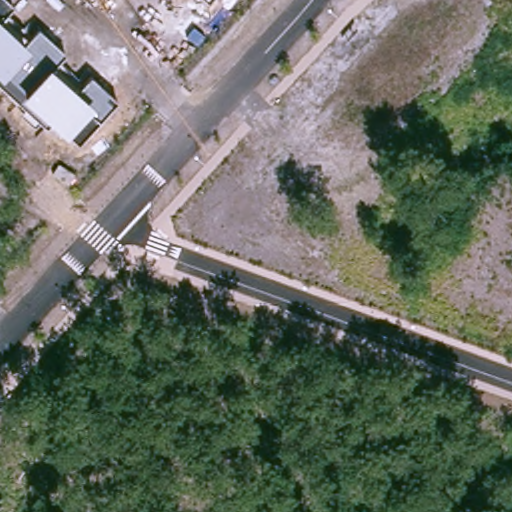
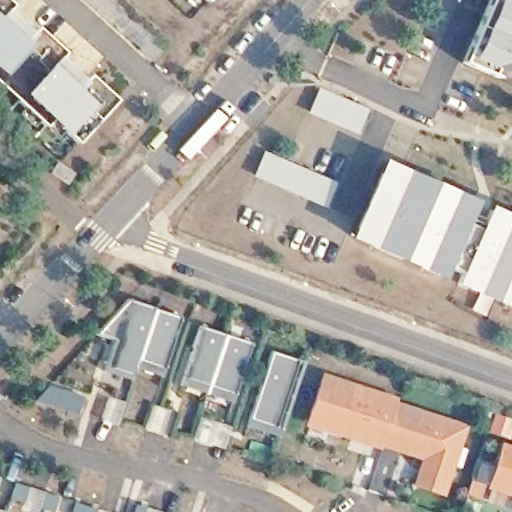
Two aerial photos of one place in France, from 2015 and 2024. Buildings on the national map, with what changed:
unchanged [(0,15),(0,0),(6,0),(10,4),(0,15)]
new [(461,61),(489,0),(512,0),(512,83),(461,61)]
unchanged [(35,26),(62,51),(47,68),(72,90),(87,74),(115,99),(76,142),(50,118),(44,125),(15,100),(22,93),(0,73),(0,25),(20,43),(35,26)]
new [(308,112),(319,86),(370,109),(358,134),(308,112)]
new [(253,176),(265,150),(338,181),(326,207),(253,176)]
new [(476,200),(469,215),(480,221),(487,205),(512,216),(512,309),(453,284),(461,268),(448,263),(442,277),(347,238),(381,159),(476,200)]
new [(184,317),(166,367),(140,359),(135,373),(108,365),(117,337),(96,333),(129,299),(184,317)]
new [(251,343),(232,401),(181,385),(200,327),(251,343)]
new [(271,352),(304,362),(278,438),(247,426),(271,352)]
new [(322,379),(396,403),(395,407),(381,447),(380,450),(307,426),(322,379)]
new [(47,388),(82,399),(77,416),(35,402),(47,388)]
new [(381,447),(395,407),(463,430),(446,481),(442,496),(415,487),(423,461),(381,447)]
new [(503,448),(512,451),(512,496),(490,489),(503,448)]
new [(4,512),(0,512),(0,508),(5,509),(4,512)]

